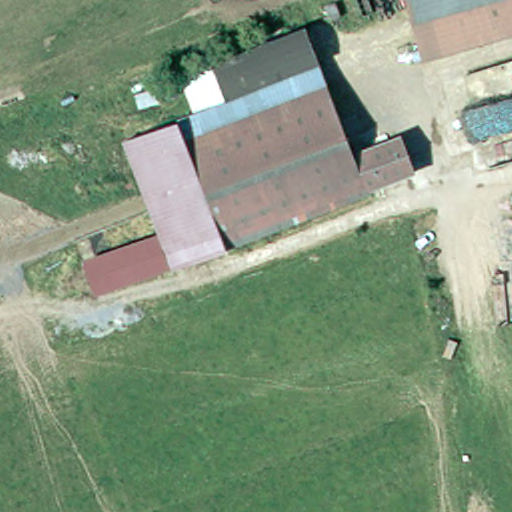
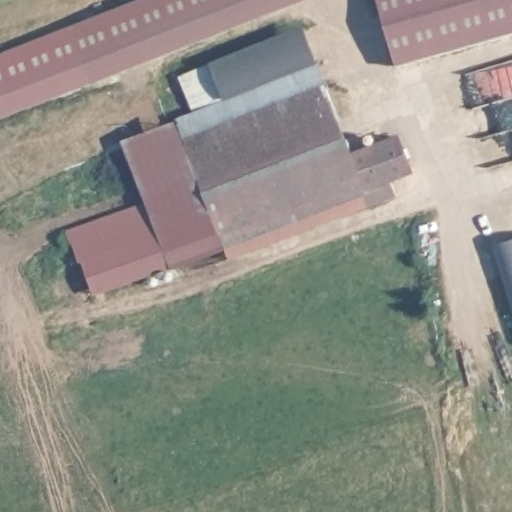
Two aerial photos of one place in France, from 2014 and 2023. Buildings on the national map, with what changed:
new [(71,25),(137,0),(307,0),(92,83),(71,25)]
unchanged [(427,62),(408,0),(512,0),(512,38),(427,62)]
new [(0,118),(0,53),(71,25),(92,83),(0,118)]
unchanged [(324,67),(206,110),(192,75),(310,32),(324,67)]
unchanged [(185,118),(206,110),(324,67),(333,91),(194,142),(185,118)]
unchanged [(336,99),(307,110),(195,155),(191,143),(194,142),(333,91),(336,99)]
unchanged [(307,110),(336,99),(357,157),(234,204),(215,211),(195,155),(307,110)]
unchanged [(175,120),(193,174),(140,192),(122,139),(175,120)]
unchanged [(234,204),(357,157),(357,160),(405,143),(417,177),(371,195),(372,198),(230,250),(215,211),(234,204)]
unchanged [(220,248),(92,292),(81,259),(155,234),(140,192),(182,178),(193,174),(220,248)]
new [(155,234),(81,259),(69,229),(144,202),(155,234)]
new [(512,238),(512,308),(492,243),(512,238)]

